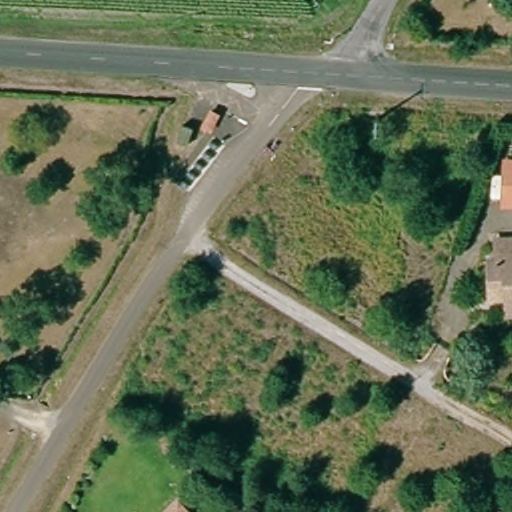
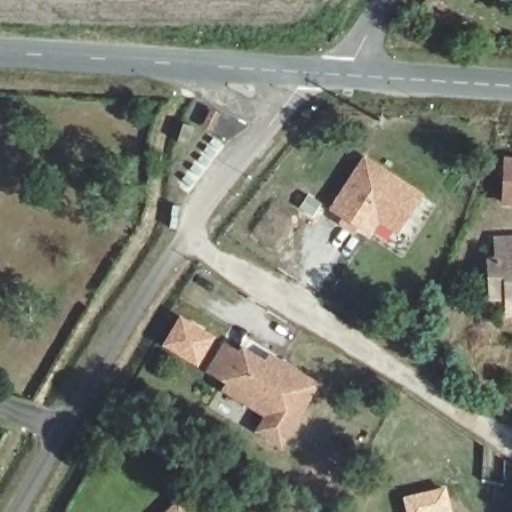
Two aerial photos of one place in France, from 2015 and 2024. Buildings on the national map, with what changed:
new [(364,155),(423,193),(397,234),(380,222),(370,236),(330,208),(364,155)]
unchanged [(504,162),(512,163),(512,204),(501,203),(504,162)]
unchanged [(506,297),(506,295),(491,296),(490,281),(489,281),(487,257),(495,257),(494,236),(512,235),(512,310),(507,310),(506,297)]
new [(198,366),(163,345),(180,315),(216,336),(198,366)]
new [(226,388),(230,381),(211,369),(226,345),(241,354),(244,349),(267,363),(272,355),(281,361),(317,383),(281,442),(260,429),(269,414),(248,401),(226,388)]
unchanged [(175,499),(188,512),(162,512),(175,499)]

